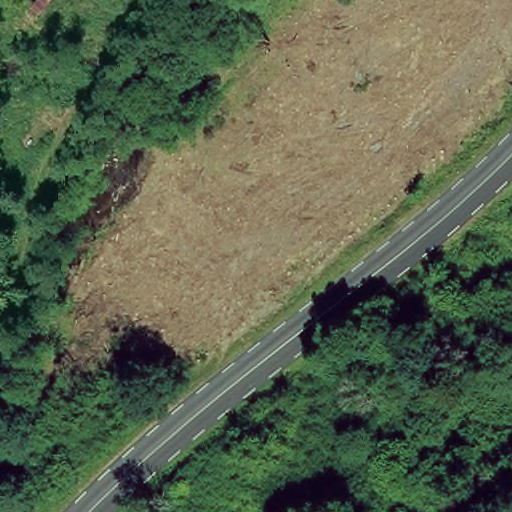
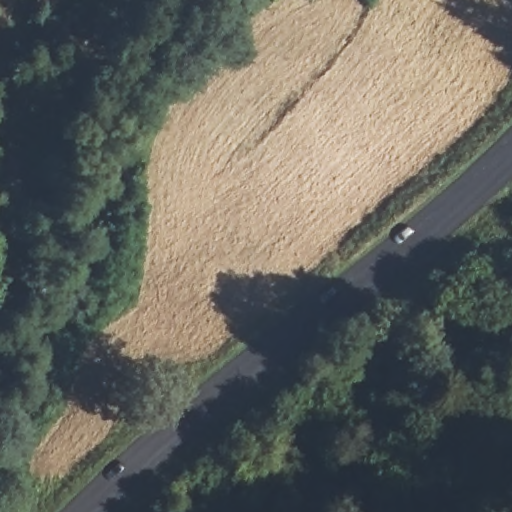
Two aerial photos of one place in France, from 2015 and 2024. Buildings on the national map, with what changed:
unchanged [(30,3),(32,0),(54,0),(43,13),(30,3)]

